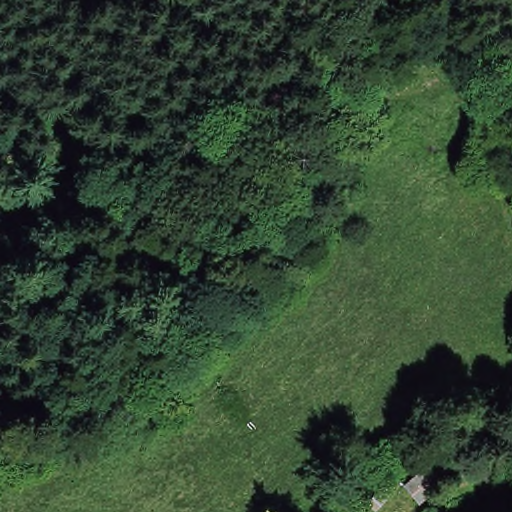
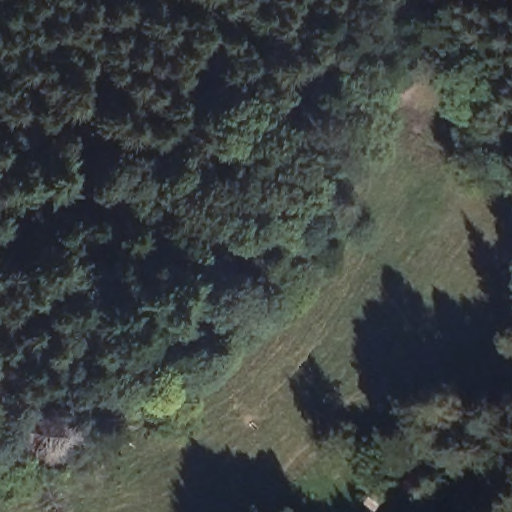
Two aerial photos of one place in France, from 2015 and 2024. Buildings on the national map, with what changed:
unchanged [(451,466),(465,482),(430,511),(418,495),(451,466)]

